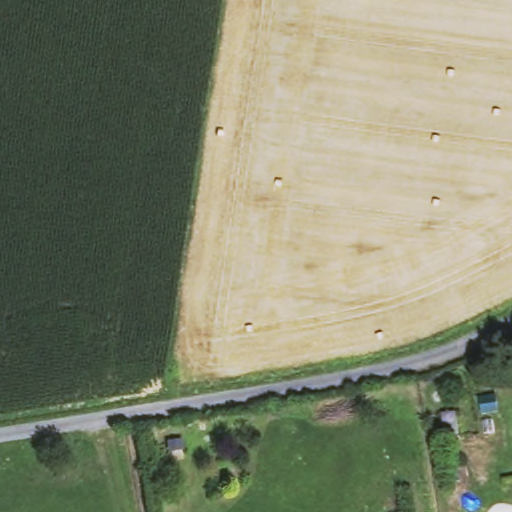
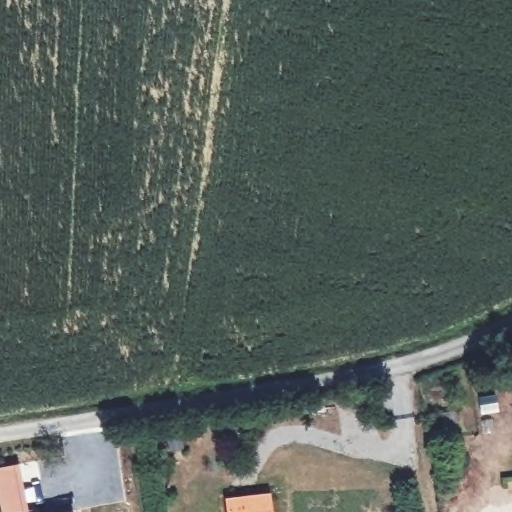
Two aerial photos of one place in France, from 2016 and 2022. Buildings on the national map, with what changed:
unchanged [(443,435),(459,432),(464,453),(448,456),(443,435)]
new [(17,468),(21,487),(25,512),(2,512),(0,500),(0,471),(17,468)]
new [(272,512),(228,512),(227,501),(270,496),(272,512)]

